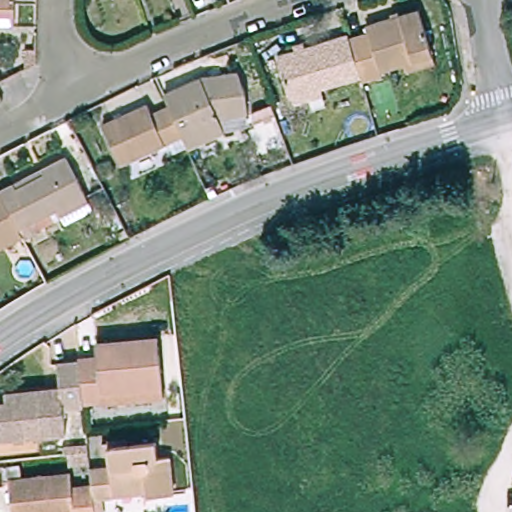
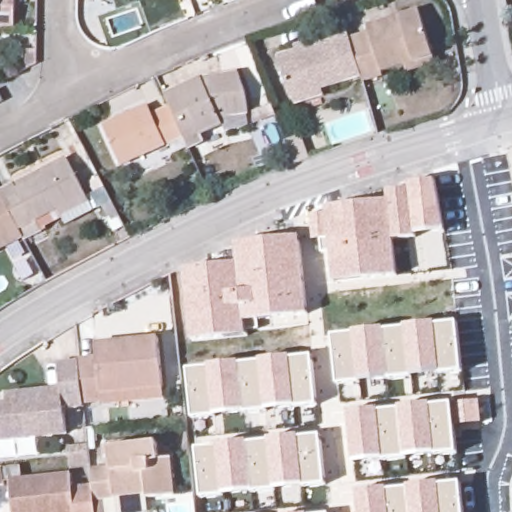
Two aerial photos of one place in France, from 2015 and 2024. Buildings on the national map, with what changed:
unchanged [(3,23),(0,23),(0,0),(4,0),(3,23)]
unchanged [(405,74),(403,66),(379,73),(380,78),(360,85),(358,77),(347,40),(367,34),(365,28),(418,11),(430,57),(433,66),(405,74)]
unchanged [(293,106),(290,98),(276,58),(346,38),(347,40),(358,77),(319,89),(322,97),(293,106)]
unchanged [(188,138),(174,108),(168,95),(206,80),(242,73),(251,115),(224,119),(230,133),(193,149),(188,138)]
unchanged [(0,104),(0,101),(1,103),(0,104)]
unchanged [(126,165),(107,127),(151,107),(155,116),(174,108),(188,138),(126,165)]
unchanged [(56,211),(18,231),(0,198),(0,192),(63,158),(84,196),(87,203),(60,219),(56,211)]
new [(335,282),(329,238),(313,240),(311,214),(326,210),(326,208),(389,200),(387,191),(410,188),(410,183),(436,180),(446,231),(416,234),(417,238),(394,240),(398,275),(335,282)]
unchanged [(21,237),(0,249),(0,198),(18,231),(21,237)]
new [(247,320),(247,334),(191,340),(184,269),(238,263),(236,242),(300,236),(308,314),(247,320)]
new [(338,385),(332,334),(457,321),(463,372),(338,385)]
unchanged [(95,352),(94,340),(157,334),(163,394),(101,401),(100,397),(81,399),(77,358),(77,354),(95,352)]
new [(194,419),(188,369),(313,354),(319,404),(194,419)]
unchanged [(82,402),(60,404),(63,429),(0,437),(0,401),(6,400),(4,390),(59,384),(57,360),(77,358),(81,399),(82,402)]
new [(354,465),(349,412),(452,402),(457,454),(354,465)]
new [(201,497),(196,448),(321,435),(327,484),(201,497)]
unchanged [(109,462),(107,443),(154,438),(156,454),(168,453),(173,489),(145,493),(145,488),(91,494),(91,482),(89,464),(109,462)]
unchanged [(0,477),(0,457),(18,455),(21,474),(68,468),(70,484),(91,482),(91,494),(93,512),(11,512),(8,476),(0,477)]
new [(461,480),(464,512),(359,512),(357,492),(461,480)]

